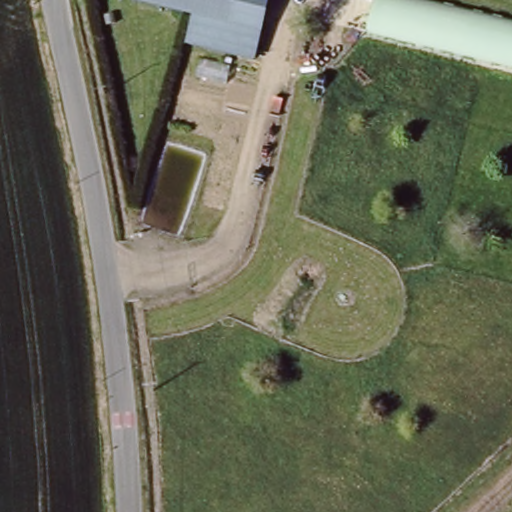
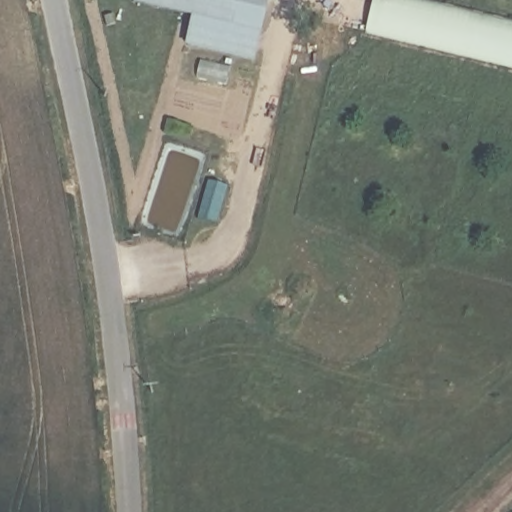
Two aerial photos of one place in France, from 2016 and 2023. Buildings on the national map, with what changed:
unchanged [(192,17),(130,2),(130,0),(269,0),(256,62),(185,46),(192,17)]
unchanged [(362,39),(371,0),(433,0),(512,19),(512,70),(362,39)]

